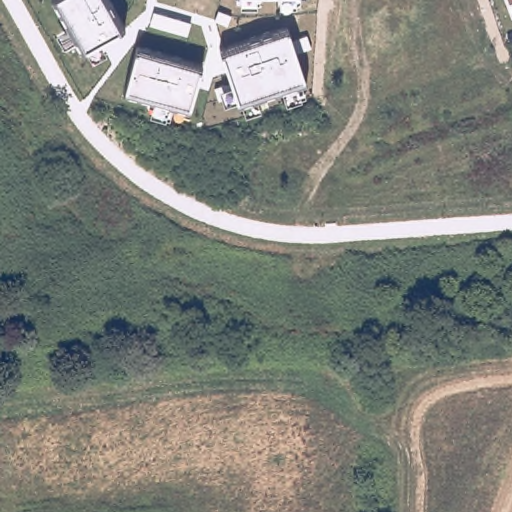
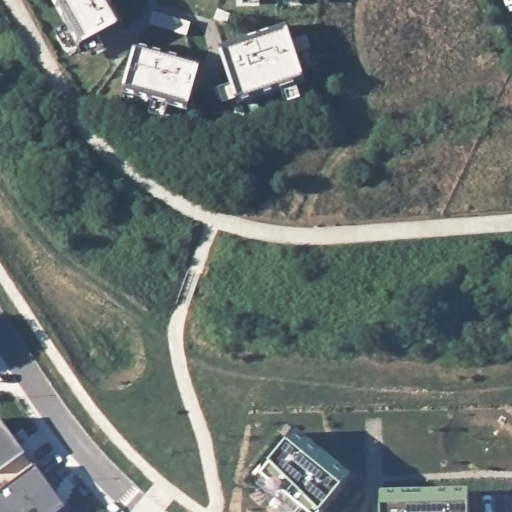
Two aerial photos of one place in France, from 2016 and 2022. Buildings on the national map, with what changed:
unchanged [(100,40),(106,51),(91,60),(82,49),(77,39),(65,46),(57,34),(71,29),(55,0),(104,0),(120,27),(100,40)]
unchanged [(259,4),(241,4),(241,3),(242,0),(259,0),(259,4)]
unchanged [(298,3),(285,3),(285,1),(277,1),(278,0),(298,0),(298,3)]
unchanged [(507,7),(504,0),(512,0),(512,6),(507,7)]
unchanged [(185,40),(146,29),(152,10),(190,22),(185,40)]
unchanged [(287,31),(292,45),(306,35),(310,49),(298,57),(305,79),(307,85),(296,89),(300,100),(285,105),(281,92),(255,101),(259,112),(246,116),(242,106),(239,107),(239,101),(225,104),(219,104),(213,87),(230,82),(222,51),(287,31)]
unchanged [(189,108),(170,104),(165,118),(152,115),(155,100),(124,92),(135,51),(199,69),(189,108)]
new [(42,461),(10,484),(0,471),(0,467),(0,417),(7,411),(42,461)]
new [(343,492),(327,512),(302,512),(290,502),(285,508),(270,495),(256,484),(260,478),(270,466),(287,445),(298,434),(353,479),(343,492)]
new [(65,512),(0,512),(0,492),(10,484),(34,467),(65,509),(65,512)]
new [(360,509),(375,508),(376,491),(476,490),(476,509),(490,508),(490,512),(349,512),(348,503),(360,502),(360,509)]

